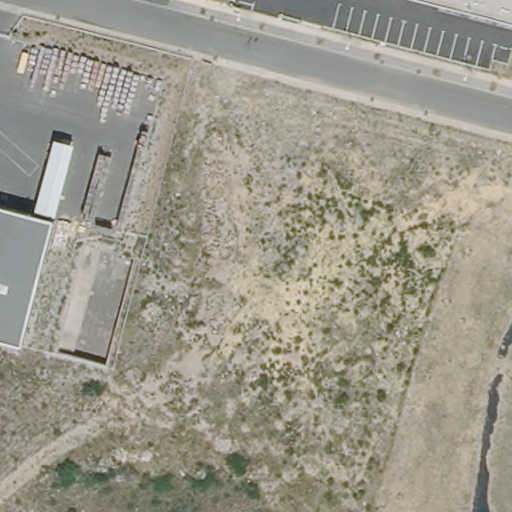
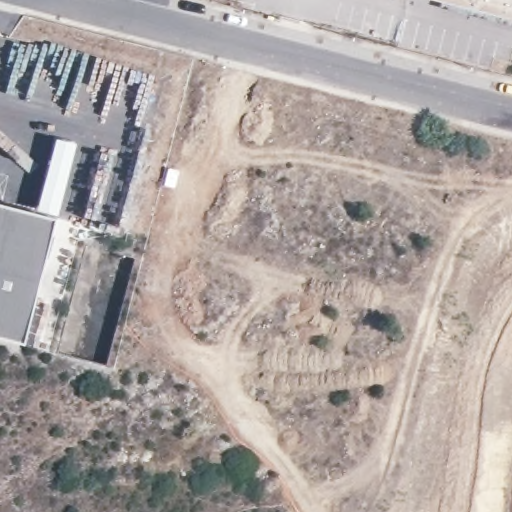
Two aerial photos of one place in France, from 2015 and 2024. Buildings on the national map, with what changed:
unchanged [(432,0),(512,0),(512,21),(432,0)]
unchanged [(0,201),(56,215),(26,341),(0,334),(0,201)]

